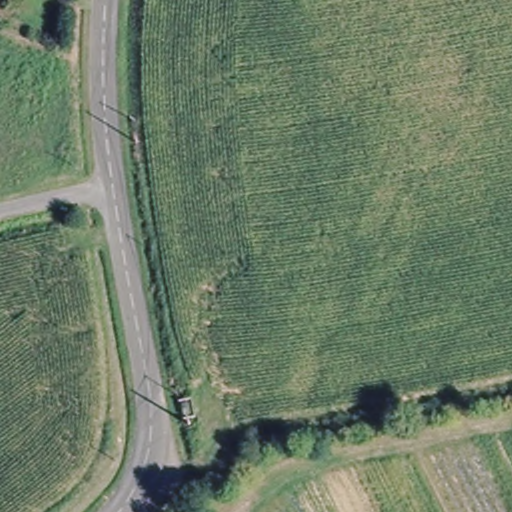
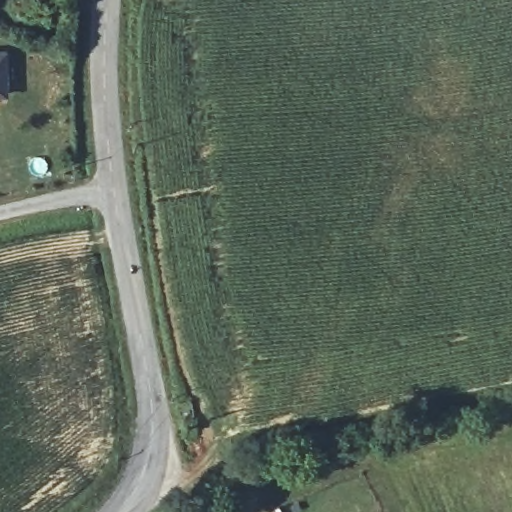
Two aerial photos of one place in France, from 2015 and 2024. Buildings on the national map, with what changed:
new [(0,96),(0,52),(6,51),(7,95),(0,96)]

